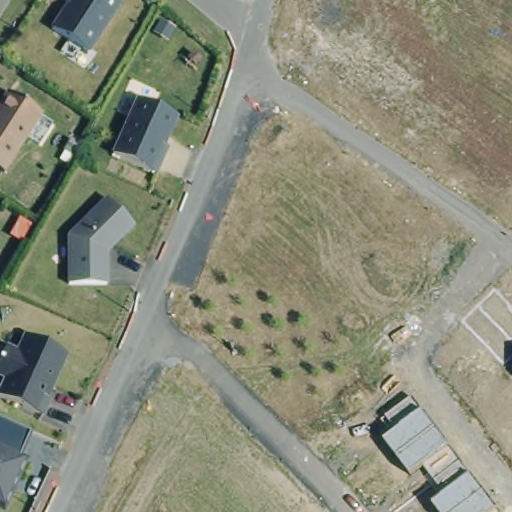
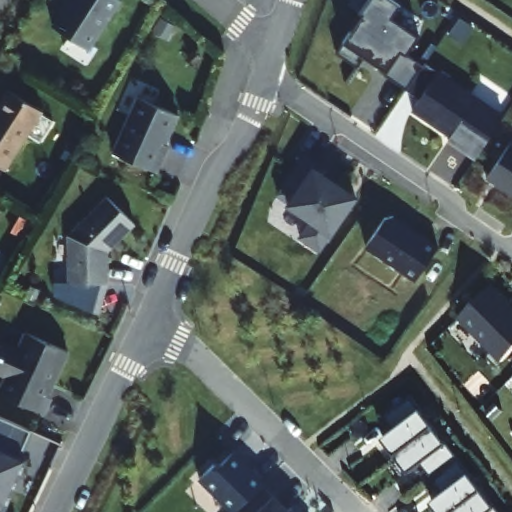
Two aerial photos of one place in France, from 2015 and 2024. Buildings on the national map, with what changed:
unchanged [(90,50),(53,27),(71,0),(121,0),(122,0),(90,50)]
new [(418,35),(407,49),(438,71),(422,96),(387,70),(365,55),(358,64),(338,50),(346,39),(363,15),(360,12),(368,0),(394,0),(400,4),(391,15),(418,35)]
new [(442,66),(505,114),(475,159),(448,140),(451,136),(413,110),(442,66)]
unchanged [(8,89),(42,111),(5,170),(0,168),(0,103),(8,89)]
unchanged [(138,97),(178,115),(165,145),(168,146),(156,173),(113,153),(138,97)]
new [(512,194),(487,177),(510,141),(512,143),(512,194)]
new [(318,161),(314,165),(359,195),(332,236),(320,253),(298,237),(307,219),(286,205),(288,202),(277,195),(303,154),(318,161)]
unchanged [(108,252),(108,284),(70,284),(70,236),(109,198),(136,225),(108,252)]
new [(367,247),(385,217),(395,214),(440,244),(416,279),(367,247)]
unchanged [(512,360),(507,364),(462,319),(494,287),(512,305),(512,360)]
unchanged [(53,388),(50,387),(46,397),(52,399),(45,415),(0,395),(0,393),(7,377),(0,374),(0,361),(7,346),(20,351),(27,334),(68,353),(53,388)]
unchanged [(393,427),(385,416),(410,397),(418,408),(422,411),(447,444),(450,446),(467,471),(470,474),(495,508),(496,508),(499,512),(439,512),(433,504),(444,494),(442,492),(422,464),(410,473),(383,439),(394,431),(393,427)]
unchanged [(20,457),(27,460),(7,505),(0,507),(0,417),(5,419),(32,432),(20,457)]
new [(236,512),(232,512),(200,479),(215,464),(222,464),(233,453),(252,472),(255,469),(267,481),(236,512)]
new [(265,508),(269,512),(260,512),(265,508)]

